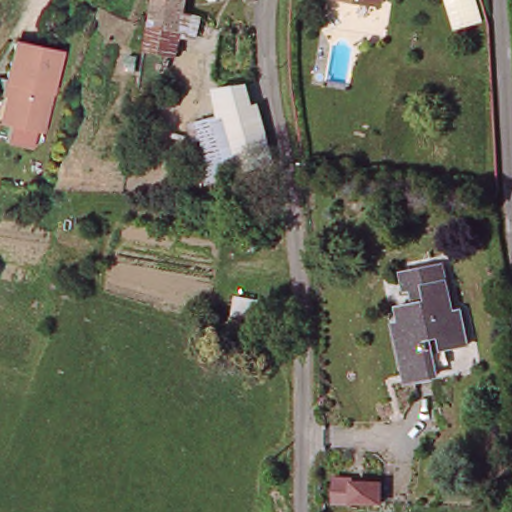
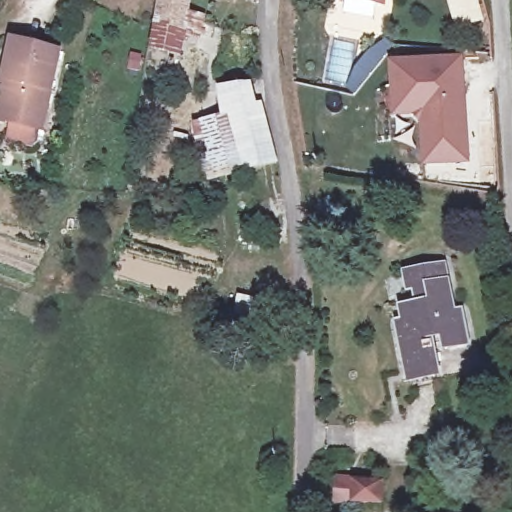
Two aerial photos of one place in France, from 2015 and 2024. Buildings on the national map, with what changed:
unchanged [(200,0),(188,33),(178,60),(155,53),(173,0),(200,0)]
unchanged [(249,0),(267,0),(267,8),(249,0)]
unchanged [(385,0),(384,5),(360,0),(385,0)]
new [(460,28),(453,0),(476,0),(482,21),(460,28)]
unchanged [(63,56),(41,132),(3,121),(13,82),(7,80),(18,43),(63,56)]
new [(422,166),(420,115),(393,117),(390,62),(461,56),(470,163),(422,166)]
unchanged [(234,113),(222,111),(226,81),(252,84),(251,102),(253,105),(263,105),(276,161),(243,166),(234,113)]
unchanged [(428,362),(402,367),(393,317),(401,315),(400,300),(408,298),(405,285),(405,270),(440,264),(447,306),(456,305),(464,339),(445,344),(425,347),(428,362)]
unchanged [(346,504),(346,483),(392,482),(393,504),(346,504)]

